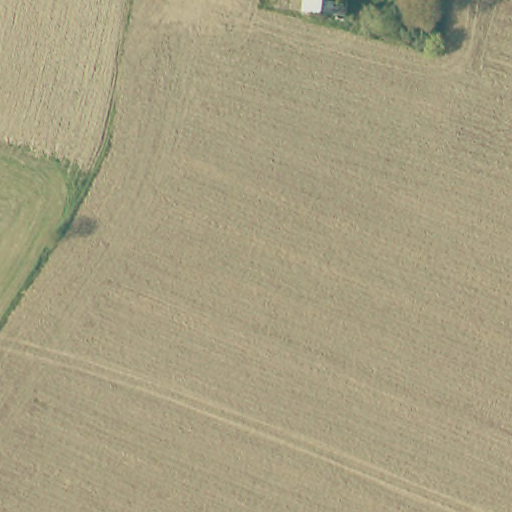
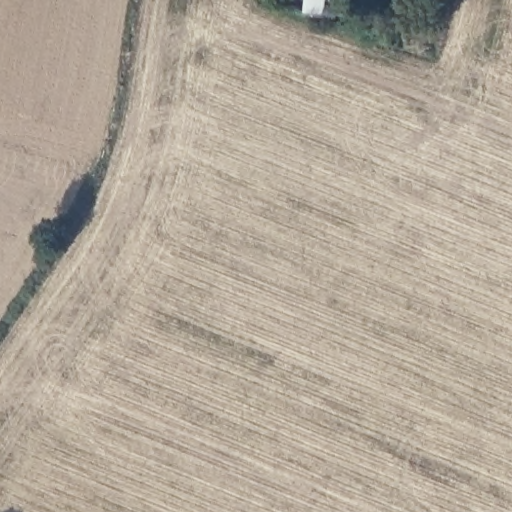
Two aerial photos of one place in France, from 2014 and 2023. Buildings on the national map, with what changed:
unchanged [(350,18),(310,13),(312,0),(351,0),(350,18)]

